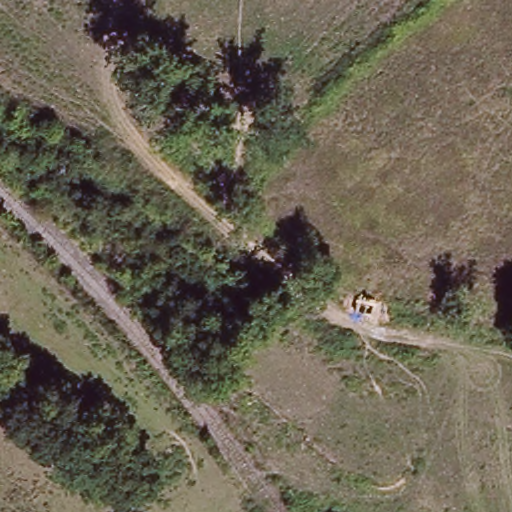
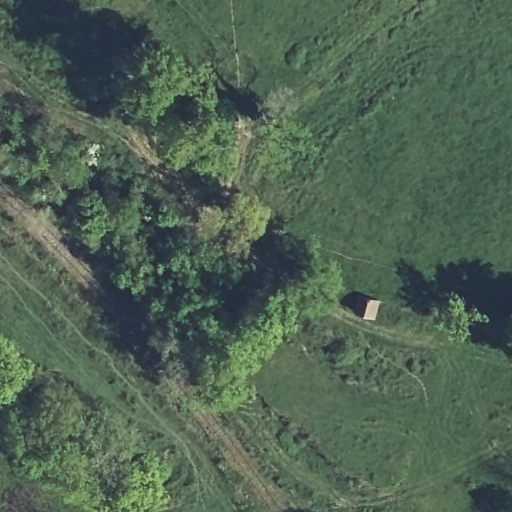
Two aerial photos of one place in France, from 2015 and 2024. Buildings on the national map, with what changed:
unchanged [(360,314),(365,298),(382,302),(379,319),(360,314)]

